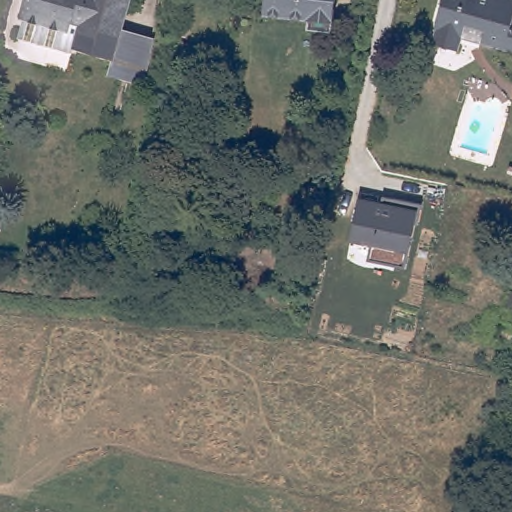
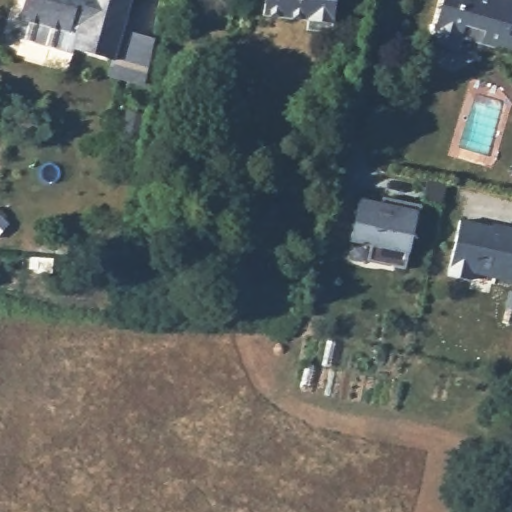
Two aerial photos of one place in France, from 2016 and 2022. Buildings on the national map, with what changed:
unchanged [(120,33),(151,42),(154,42),(143,79),(110,70),(112,63),(72,52),(71,56),(17,41),(22,20),(20,19),(26,0),(130,0),(126,12),(120,33)]
unchanged [(313,34),(315,26),(268,19),(271,0),(343,0),(338,37),(313,34)]
unchanged [(488,37),(468,31),(463,52),(434,45),(438,30),(437,27),(445,0),(512,0),(512,52),(486,45),(488,37)]
unchanged [(368,260),(370,244),(350,241),(357,199),(380,203),(380,197),(418,205),(403,267),(368,260)]
new [(501,232),(501,230),(512,232),(512,283),(491,279),(492,276),(470,272),(468,282),(446,278),(457,224),(490,231),(501,232)]
unchanged [(512,291),(512,310),(501,307),(506,290),(512,291)]

